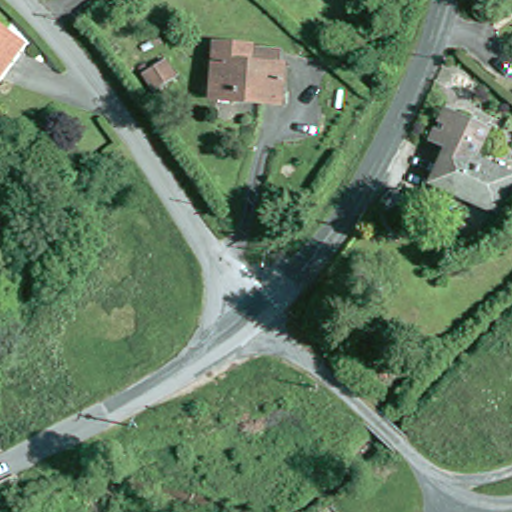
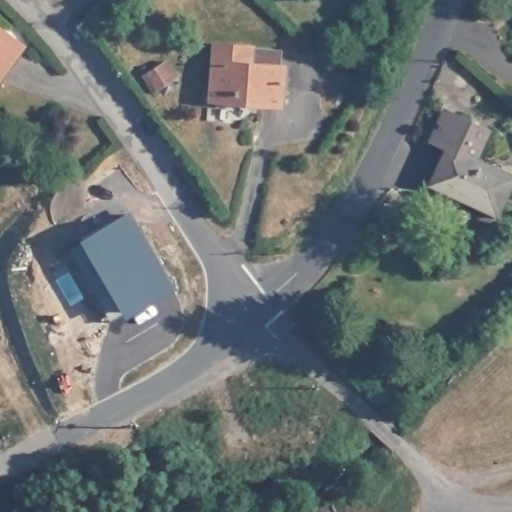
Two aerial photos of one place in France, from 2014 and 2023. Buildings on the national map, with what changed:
unchanged [(0,31),(19,45),(0,71),(0,31)]
unchanged [(250,45),(250,48),(280,51),(278,67),(282,67),(279,102),(213,95),(218,41),(250,45)]
unchanged [(172,55),(182,74),(158,86),(148,68),(172,55)]
unchanged [(490,210),(428,179),(445,145),(427,136),(443,105),(475,122),(486,127),(470,158),(508,176),(490,210)]
new [(127,316),(81,237),(131,209),(177,287),(127,316)]

